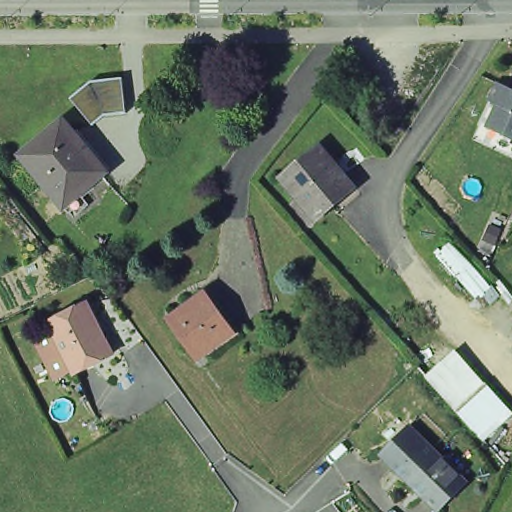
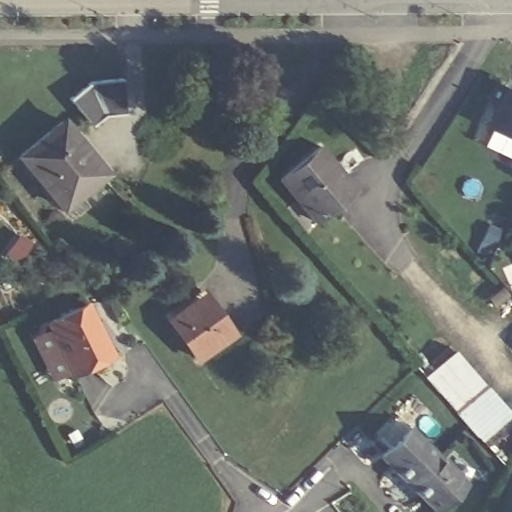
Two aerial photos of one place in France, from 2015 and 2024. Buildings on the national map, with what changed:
unchanged [(87,112),(71,92),(94,74),(122,72),(125,106),(105,106),(91,117),(87,112)]
unchanged [(502,99),(494,95),(502,79),(512,84),(512,131),(491,121),(502,99)]
unchanged [(20,148),(62,114),(87,145),(44,178),(20,148)]
unchanged [(67,206),(61,200),(44,178),(87,145),(104,166),(77,187),(87,199),(77,206),(73,201),(67,206)]
unchanged [(311,221),(274,178),(312,145),(350,188),(311,221)]
unchanged [(222,331),(190,356),(162,320),(175,310),(194,295),(197,300),(222,331)]
unchanged [(77,371),(52,321),(89,303),(114,353),(77,371)]
unchanged [(455,347),(512,405),(512,417),(485,437),(425,375),(455,347)]
unchanged [(413,475),(385,446),(410,420),(439,448),(413,475)]
unchanged [(439,448),(467,476),(442,502),(413,475),(439,448)]

